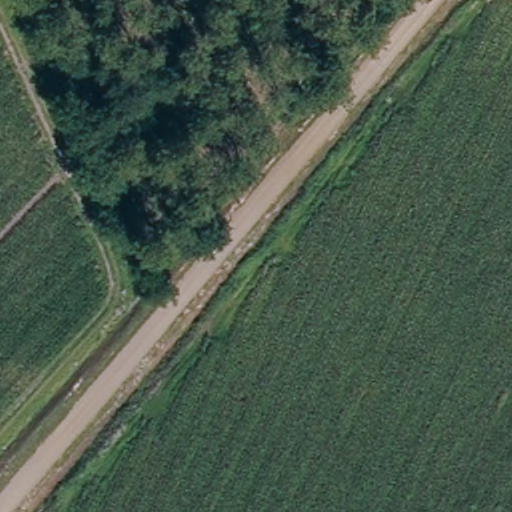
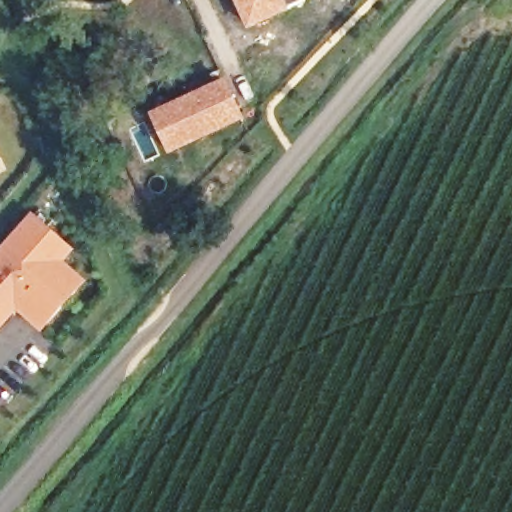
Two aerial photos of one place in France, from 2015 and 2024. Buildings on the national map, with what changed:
new [(247,30),(234,0),(305,0),(305,2),(247,30)]
new [(225,78),(245,120),(169,155),(149,114),(225,78)]
new [(0,176),(0,150),(4,159),(8,173),(0,176)]
new [(35,213),(76,250),(67,261),(87,280),(43,332),(19,310),(0,332),(0,252),(35,213)]

